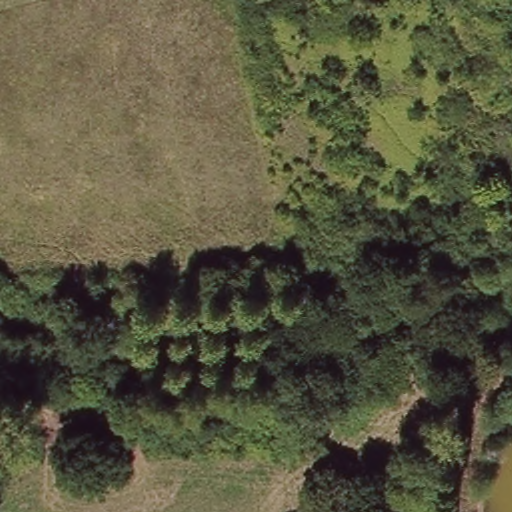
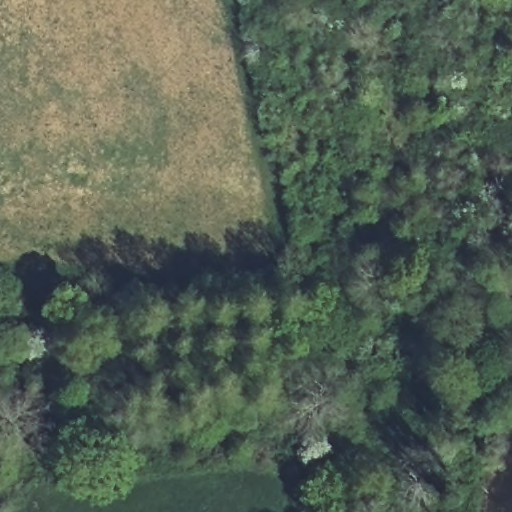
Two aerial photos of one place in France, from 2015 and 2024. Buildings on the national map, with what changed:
[]

